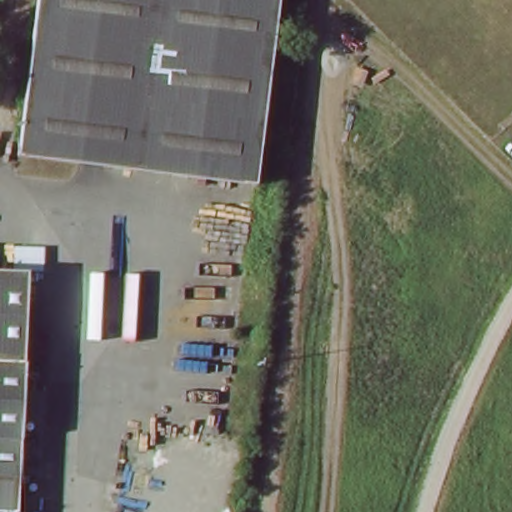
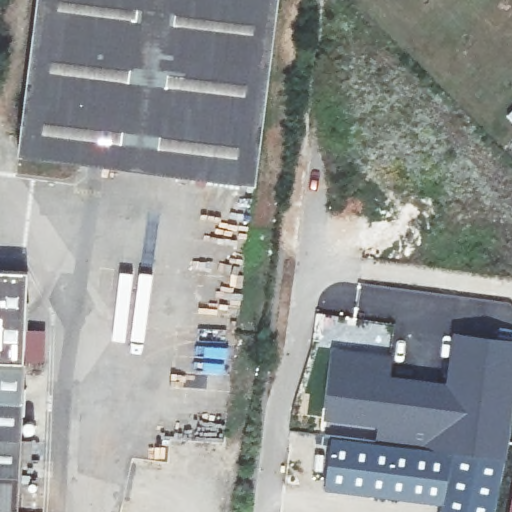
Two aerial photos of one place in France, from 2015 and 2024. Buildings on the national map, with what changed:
unchanged [(19,151),(37,0),(276,0),(255,178),(19,151)]
unchanged [(0,271),(24,272),(22,316),(15,512),(0,512),(0,271)]
new [(323,433),(373,439),(375,429),(322,422),(330,342),(394,351),(392,374),(445,380),(452,330),(512,337),(512,426),(510,442),(496,512),(437,512),(439,504),(387,497),(323,490),(325,470),(322,470),(323,433)]
new [(512,490),(512,512),(508,512),(512,490)]

